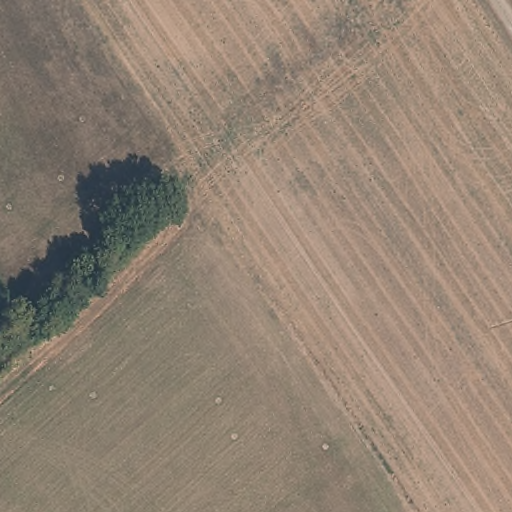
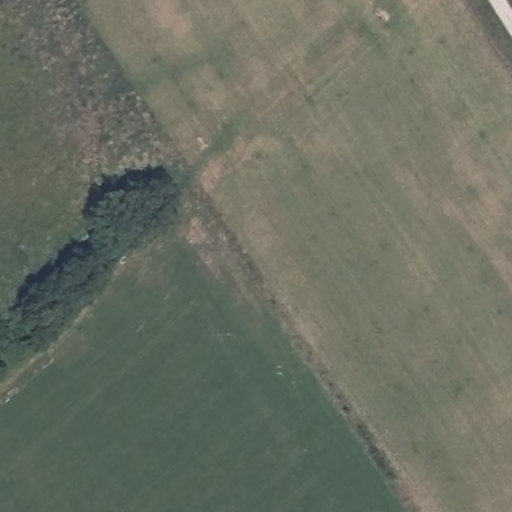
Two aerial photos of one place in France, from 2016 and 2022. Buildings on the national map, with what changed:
[]

